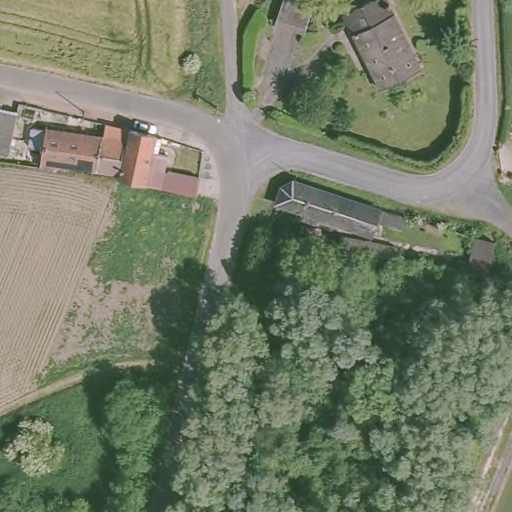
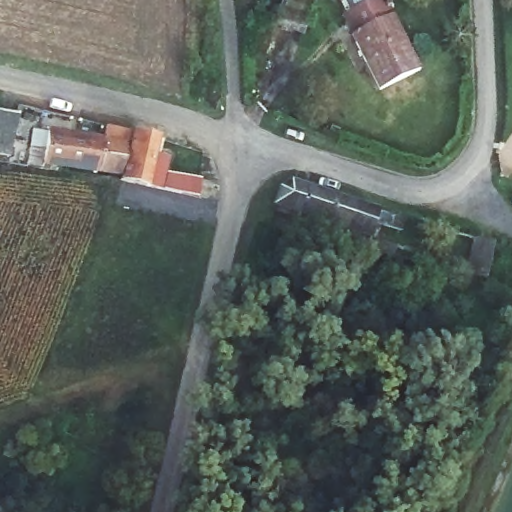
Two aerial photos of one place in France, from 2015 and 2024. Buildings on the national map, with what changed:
unchanged [(275,20),(281,0),(315,0),(305,29),(303,36),(273,26),(275,20)]
unchanged [(387,2),(392,10),(390,11),(419,71),(378,91),(351,36),(341,17),(350,12),(376,0),(383,0),(385,3),(387,2)]
unchanged [(11,108),(3,152),(0,151),(0,106),(11,108)]
unchanged [(32,135),(122,149),(120,182),(57,172),(57,176),(37,174),(39,169),(27,167),(28,155),(32,135)]
unchanged [(130,137),(154,145),(161,147),(158,162),(167,165),(165,177),(198,185),(195,205),(118,186),(120,182),(130,137)]
unchanged [(282,199),(283,186),(296,177),(409,214),(405,226),(380,219),(375,231),(320,212),(317,220),(304,215),(307,207),(282,199)]
unchanged [(345,234),(401,244),(398,256),(342,247),(345,234)]
unchanged [(462,257),(475,258),(480,234),(498,239),(491,273),(460,267),(462,257)]

